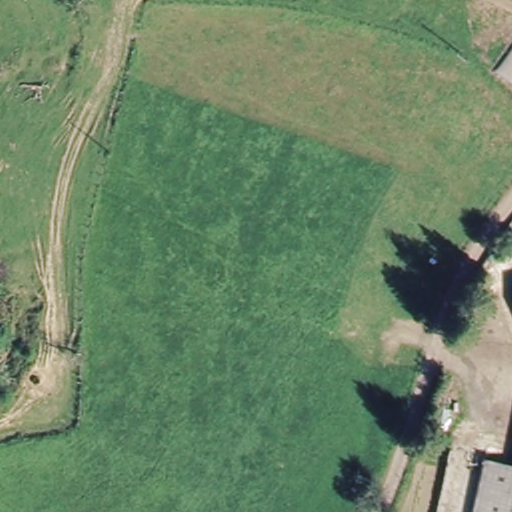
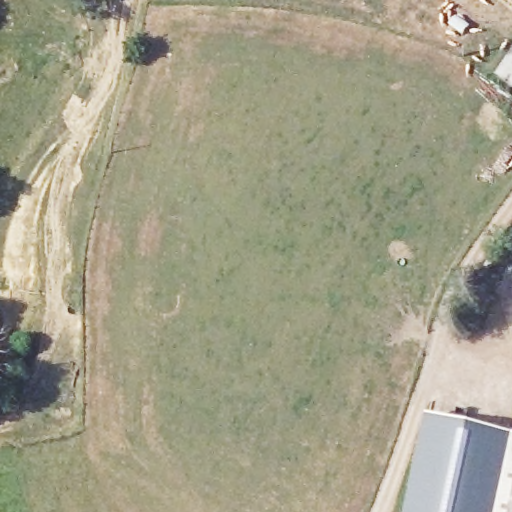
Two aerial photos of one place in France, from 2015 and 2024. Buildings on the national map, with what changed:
new [(512,433),(512,512),(406,512),(428,415),(512,433)]
demolished [(469,512),(483,457),(512,463),(512,512),(469,512)]

